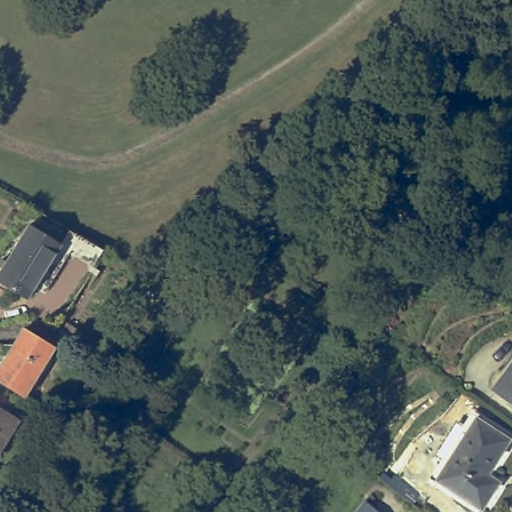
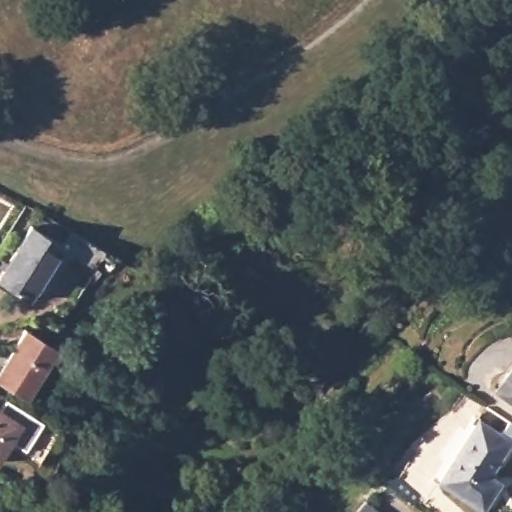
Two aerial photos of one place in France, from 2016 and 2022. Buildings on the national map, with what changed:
unchanged [(213,224),(237,206),(258,219),(243,243),(213,224)]
unchanged [(0,273),(30,226),(61,245),(26,300),(0,283),(0,273)]
unchanged [(106,250),(96,267),(61,245),(69,230),(106,250)]
unchanged [(66,324),(83,334),(74,347),(58,337),(66,324)]
unchanged [(56,347),(25,397),(0,382),(0,367),(24,328),(56,347)]
unchanged [(497,385),(512,365),(512,396),(497,385)]
unchanged [(0,402),(23,417),(0,453),(0,402)]
unchanged [(495,490),(482,511),(436,481),(448,462),(442,457),(456,436),(463,440),(477,418),(510,440),(488,475),(493,478),(500,482),(495,490)]
unchanged [(0,474),(5,467),(15,473),(10,482),(0,475),(0,474)]
unchanged [(378,512),(356,512),(365,502),(378,512)]

